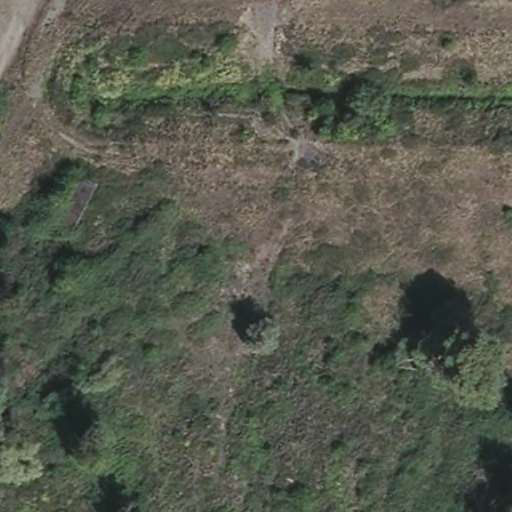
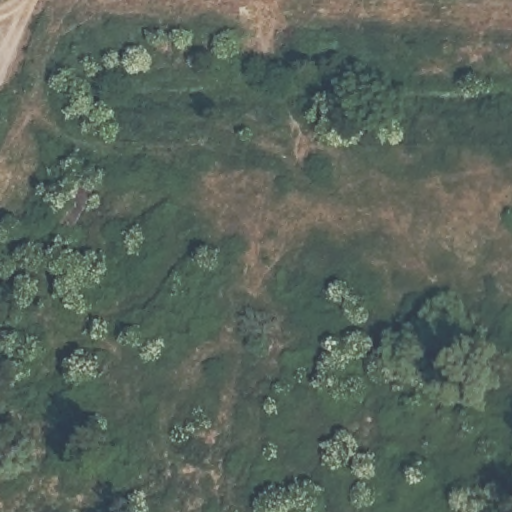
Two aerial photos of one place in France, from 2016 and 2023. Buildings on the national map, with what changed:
unchanged [(95,178),(79,227),(56,220),(74,170),(95,178)]

